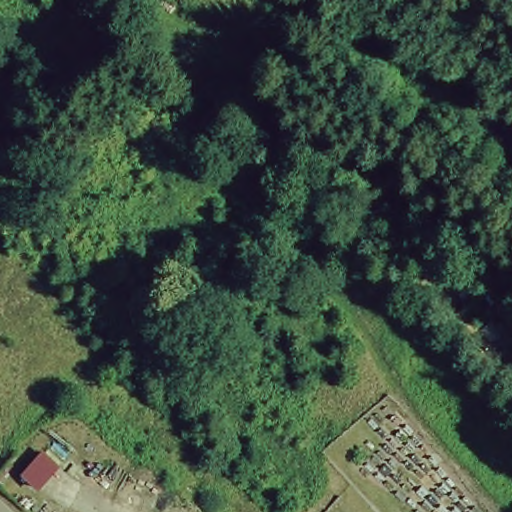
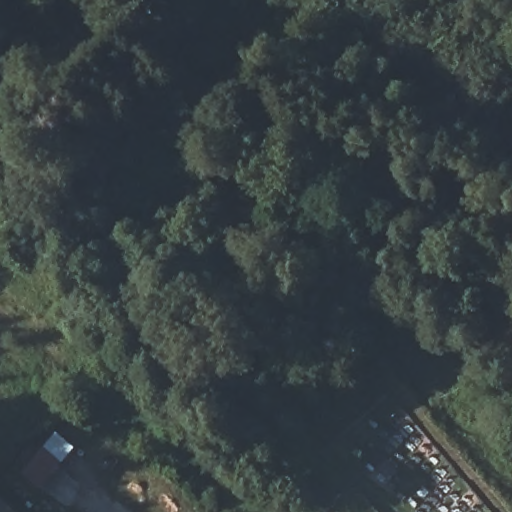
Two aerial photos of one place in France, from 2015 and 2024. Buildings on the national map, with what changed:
unchanged [(42,491),(22,477),(45,452),(65,467),(42,491)]

